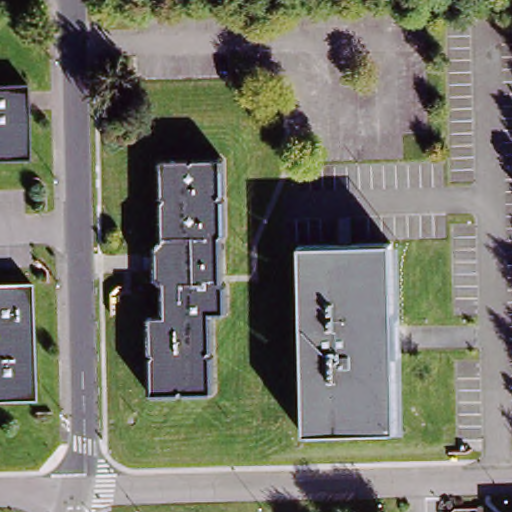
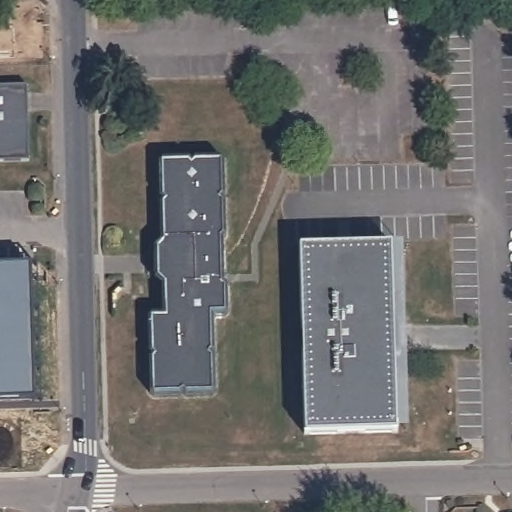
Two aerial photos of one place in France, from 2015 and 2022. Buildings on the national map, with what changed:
unchanged [(26,164),(0,165),(0,86),(22,85),(26,164)]
unchanged [(146,317),(161,317),(161,291),(153,285),(152,248),(160,244),(156,162),(222,159),(226,316),(215,316),(217,398),(147,398),(146,317)]
unchanged [(401,246),(404,321),(410,321),(411,358),(406,358),(409,433),(316,437),(312,355),(319,354),(318,332),(311,332),(307,249),(401,246)]
unchanged [(32,406),(0,407),(0,289),(30,288),(32,406)]

